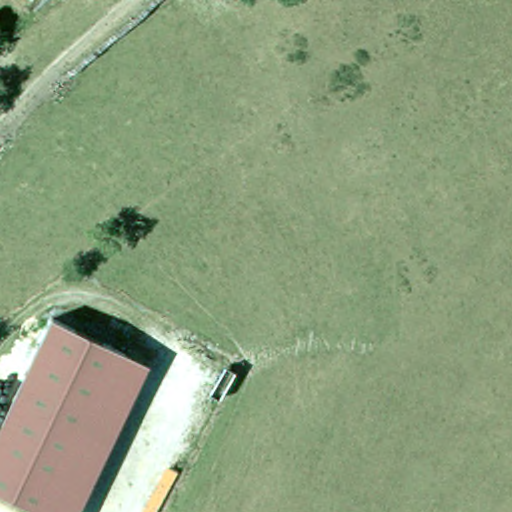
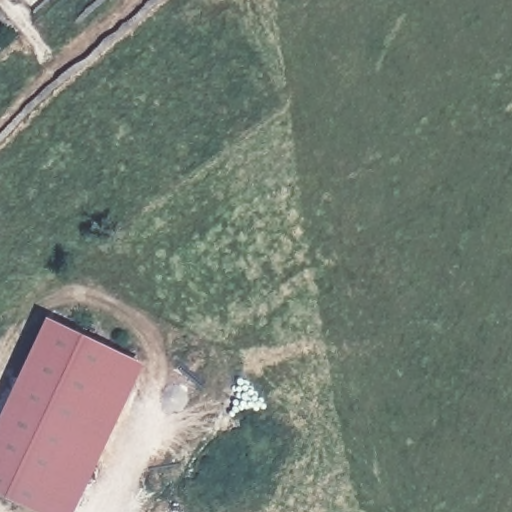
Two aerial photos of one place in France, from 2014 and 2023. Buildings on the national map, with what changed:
unchanged [(137,359),(64,512),(35,512),(0,497),(0,460),(62,327),(137,359)]

